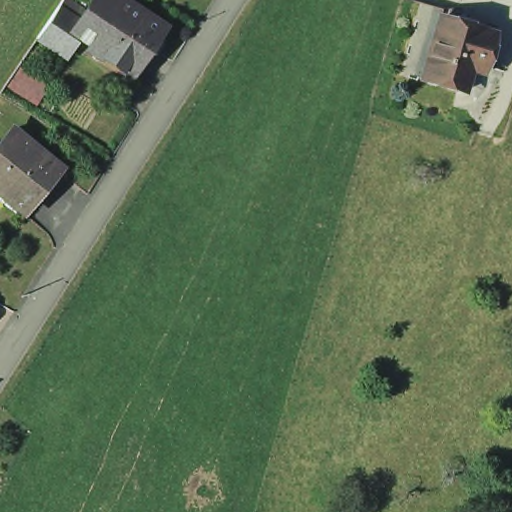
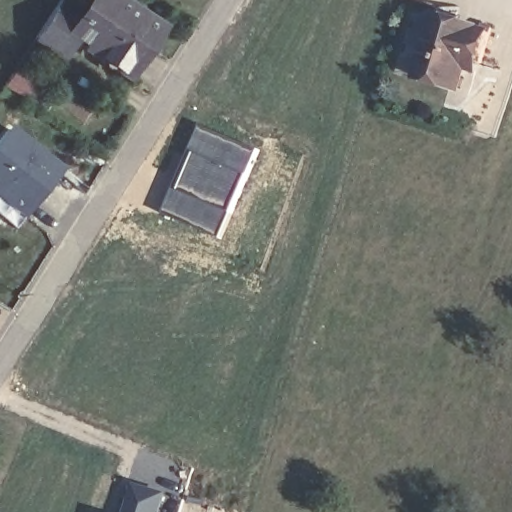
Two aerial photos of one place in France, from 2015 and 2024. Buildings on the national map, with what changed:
unchanged [(125,79),(85,53),(87,49),(74,40),(61,60),(34,42),(54,13),(60,4),(75,14),(73,17),(81,22),(95,0),(102,0),(114,8),(155,34),(125,79)]
unchanged [(414,75),(432,5),(451,11),(449,20),(432,80),(414,75)]
unchanged [(475,92),(432,80),(449,20),(494,32),(496,27),(504,29),(502,35),(496,57),(492,73),(481,71),(475,92)]
new [(201,125),(261,151),(222,241),(162,214),(201,125)]
unchanged [(57,170),(23,211),(0,192),(0,144),(11,131),(57,170)]
new [(168,492),(162,512),(122,512),(134,481),(168,492)]

